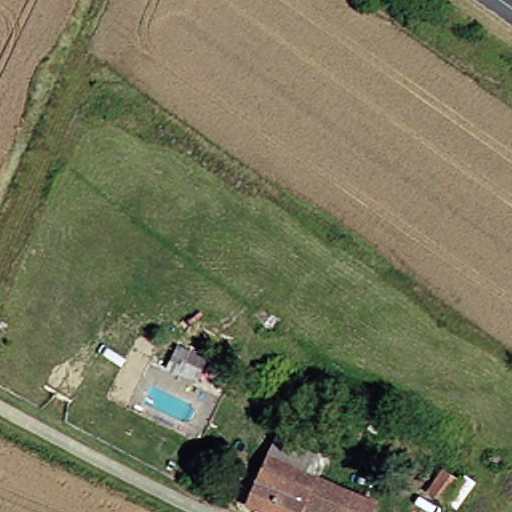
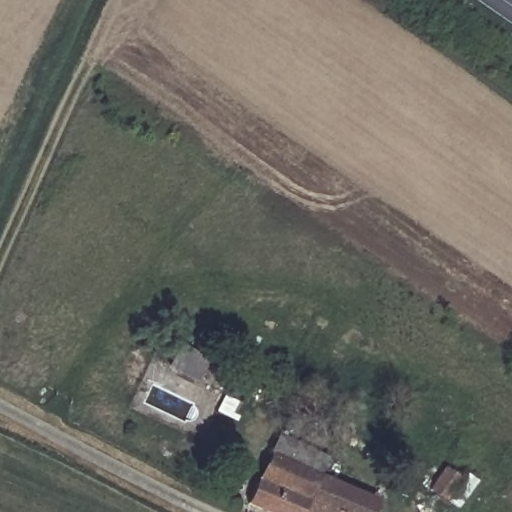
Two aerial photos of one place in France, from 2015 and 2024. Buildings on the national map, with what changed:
unchanged [(272,437),(305,450),(299,463),(286,496),(254,484),(272,437)]
unchanged [(299,463),(331,476),(327,488),(365,503),(362,512),(248,512),(244,510),(254,484),(286,496),(299,463)]

